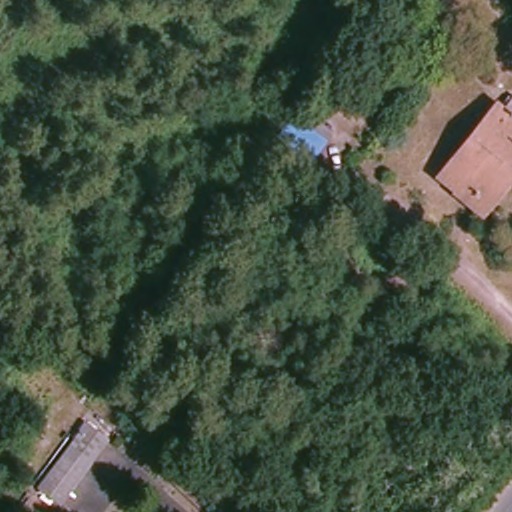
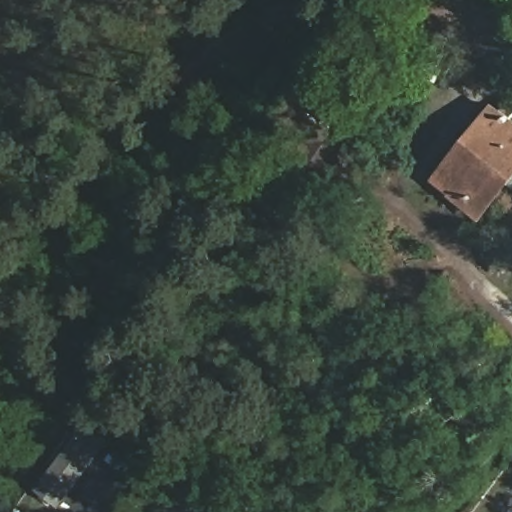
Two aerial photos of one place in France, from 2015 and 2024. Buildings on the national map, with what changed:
unchanged [(502,189),(488,208),(461,186),(456,192),(438,177),(495,105),(512,119),(512,162),(495,184),(502,189)]
unchanged [(305,169),(284,155),(275,166),(265,158),(301,109),(332,131),(305,169)]
unchanged [(109,440),(61,507),(38,489),(86,424),(109,440)]

